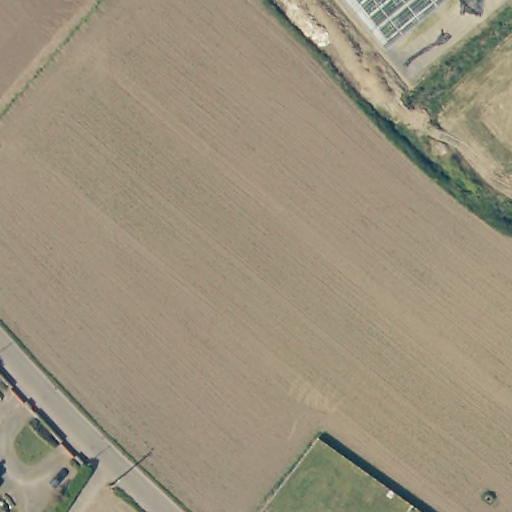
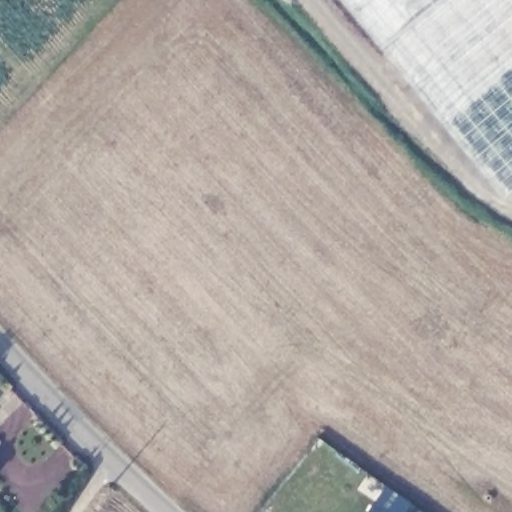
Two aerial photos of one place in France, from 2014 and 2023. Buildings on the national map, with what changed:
unchanged [(441,0),(381,48),(340,0),(441,0)]
new [(381,48),(441,0),(512,0),(512,195),(495,208),(381,48)]

